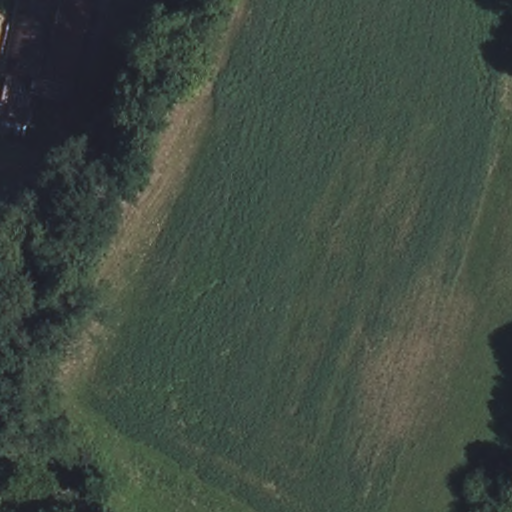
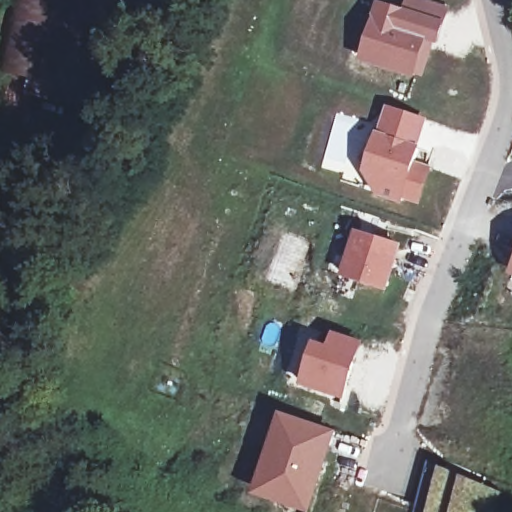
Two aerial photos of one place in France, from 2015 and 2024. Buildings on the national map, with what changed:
unchanged [(63,104),(0,91),(0,39),(8,0),(60,0),(83,5),(63,104)]
new [(413,76),(364,60),(380,7),(405,14),(409,0),(411,0),(446,11),(436,42),(432,40),(421,75),(414,73),(413,76)]
new [(424,122),(414,149),(417,150),(413,165),(428,170),(418,202),(402,197),(401,201),(375,193),(379,179),(366,174),(378,137),(380,137),(389,110),(424,122)]
new [(398,247),(384,290),(344,277),(358,235),(398,247)]
new [(512,262),(512,275),(507,273),(512,262)]
new [(303,385),(316,346),(329,351),(334,337),(360,345),(343,398),(303,385)]
new [(333,435),(311,500),(269,486),(291,420),(333,435)]
new [(425,475),(434,477),(438,466),(456,472),(455,474),(457,475),(451,495),(454,496),(450,512),(415,512),(425,475)]
new [(454,496),(451,495),(457,475),(502,492),(496,512),(450,512),(454,496)]

